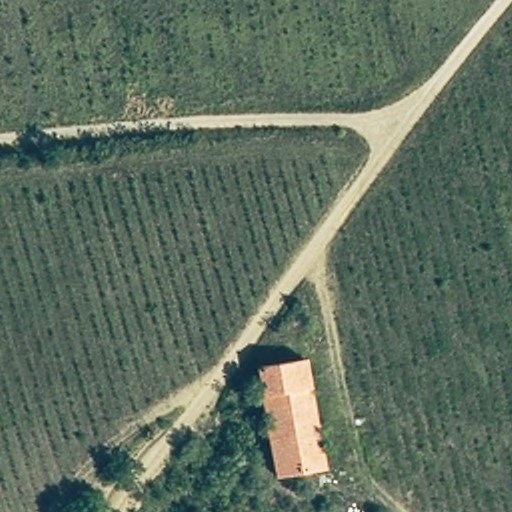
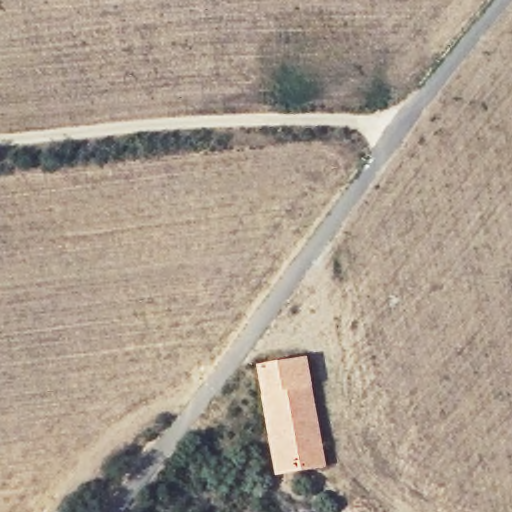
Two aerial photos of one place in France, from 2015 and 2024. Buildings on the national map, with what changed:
unchanged [(254,374),(304,365),(324,460),(274,469),(254,374)]

